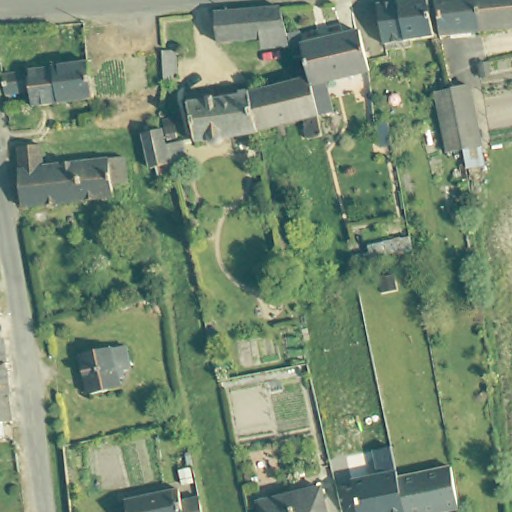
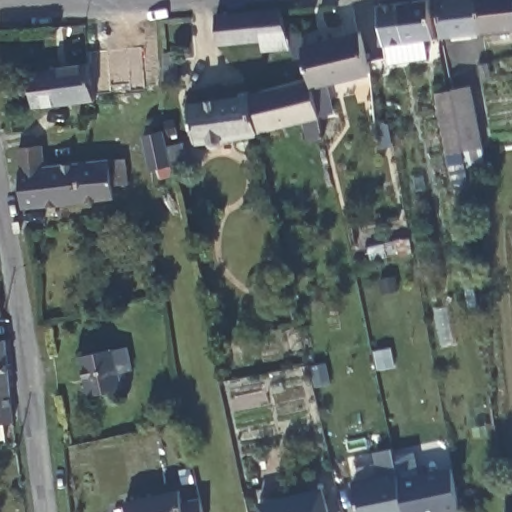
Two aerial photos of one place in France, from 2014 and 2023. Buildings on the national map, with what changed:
unchanged [(428,0),(433,36),(411,39),(411,44),(385,48),(383,38),(377,3),(405,0),(428,0)]
unchanged [(436,0),(477,0),(481,33),(441,38),(436,0)]
unchanged [(481,33),(477,0),(512,0),(512,30),(481,33)]
unchanged [(287,4),(297,43),(268,45),(267,37),(262,7),(287,4)]
unchanged [(226,41),(223,10),(262,7),(267,37),(226,41)]
unchanged [(365,31),(372,70),(315,82),(310,59),(307,52),(306,44),(365,31)]
unchanged [(174,56),(176,87),(164,87),(160,57),(174,56)]
unchanged [(328,131),(313,135),(308,117),(262,128),(254,90),(285,81),(282,66),(310,59),(315,82),(328,131)]
unchanged [(92,63),(95,99),(34,107),(31,95),(10,97),(6,72),(92,63)]
unchanged [(263,132),(250,134),(228,137),(221,143),(214,138),(177,144),(171,104),(243,93),(242,88),(252,87),(254,90),(262,128),(263,132)]
unchanged [(447,132),(438,96),(455,92),(471,87),(485,149),(468,151),(452,154),(447,132)]
unchanged [(177,172),(162,175),(160,165),(156,166),(149,132),(154,132),(152,126),(158,125),(159,131),(168,129),(171,144),(177,172)]
unchanged [(24,205),(20,177),(17,146),(42,143),(45,164),(109,158),(109,159),(129,157),(134,188),(113,191),(114,193),(24,205)]
unchanged [(117,218),(118,227),(110,228),(109,219),(117,218)]
unchanged [(130,347),(135,370),(121,373),(125,388),(94,395),(85,356),(130,347)]
unchanged [(0,426),(0,384),(7,425),(0,426)]
unchanged [(352,482),(378,477),(373,451),(392,449),(398,485),(407,483),(414,512),(360,512),(352,482)]
unchanged [(457,512),(414,512),(407,483),(450,472),(457,512)]
unchanged [(332,512),(264,512),(262,504),(327,488),(332,512)]
unchanged [(128,500),(181,489),(184,501),(202,497),(205,512),(131,512),(128,500)]

